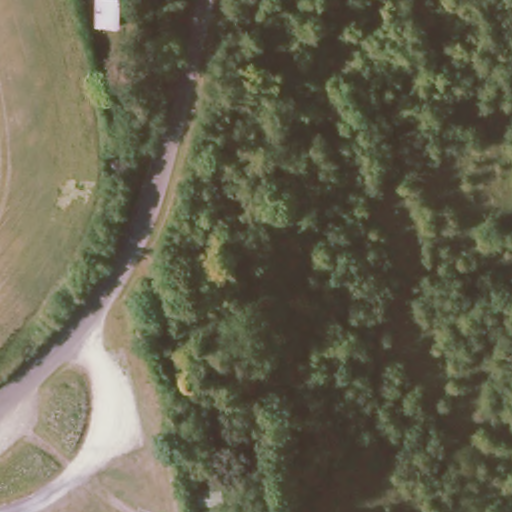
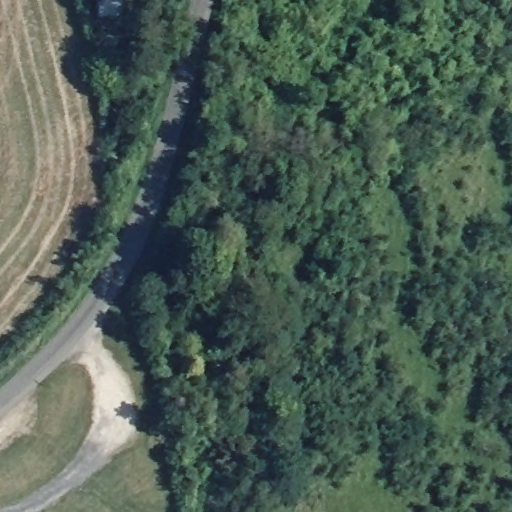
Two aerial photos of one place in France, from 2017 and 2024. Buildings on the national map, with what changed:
unchanged [(126,23),(94,23),(97,0),(128,0),(126,23)]
unchanged [(204,438),(210,489),(190,492),(184,441),(204,438)]

